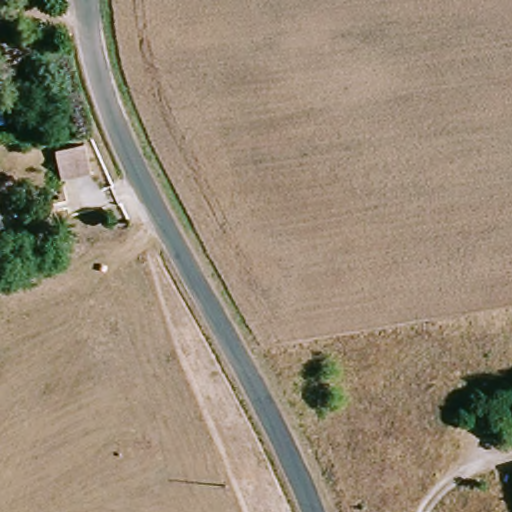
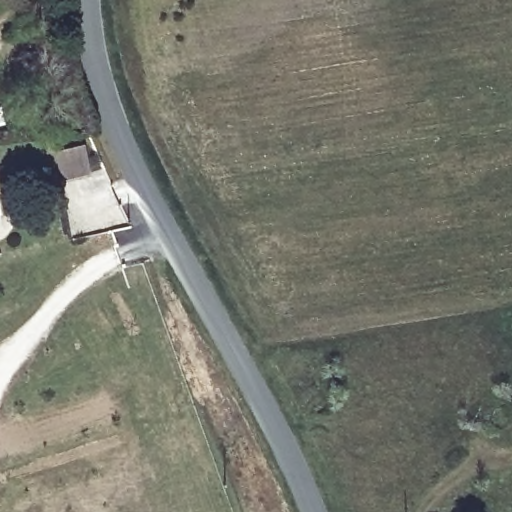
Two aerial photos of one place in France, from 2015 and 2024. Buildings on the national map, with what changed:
unchanged [(66,186),(59,158),(87,150),(95,178),(66,186)]
unchanged [(1,242),(0,243),(0,237),(1,242)]

